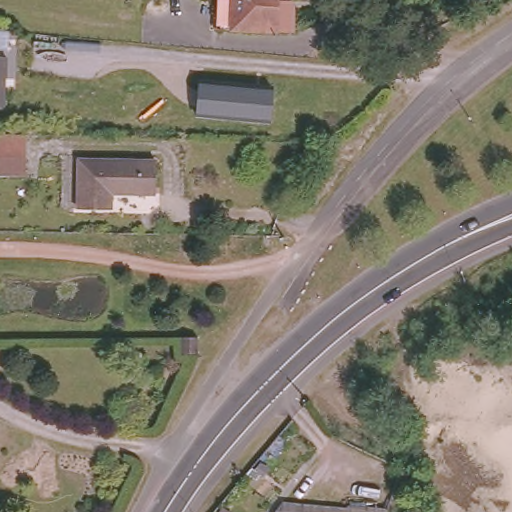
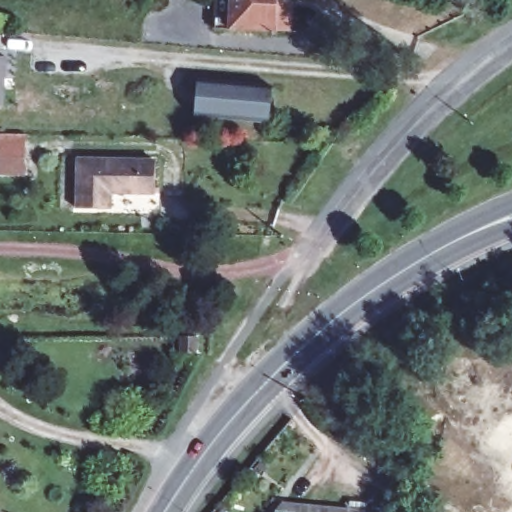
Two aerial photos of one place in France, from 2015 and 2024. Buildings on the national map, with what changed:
unchanged [(302,3),(301,29),(285,28),(224,26),(225,0),(302,0),(302,3)]
unchanged [(0,17),(13,17),(12,30),(11,48),(0,48),(0,17)]
unchanged [(10,76),(8,76),(7,106),(0,106),(0,55),(11,55),(10,76)]
unchanged [(273,88),(270,121),(196,116),(198,82),(273,88)]
unchanged [(0,171),(0,155),(9,155),(9,143),(25,143),(25,155),(26,155),(25,171),(0,171)]
unchanged [(156,158),(154,190),(110,190),(109,206),(78,206),(78,157),(156,158)]
unchanged [(201,330),(202,345),(186,345),(185,330),(201,330)]
unchanged [(281,503),(369,511),(371,500),(391,501),(389,512),(281,512),(278,510),(281,503)]

